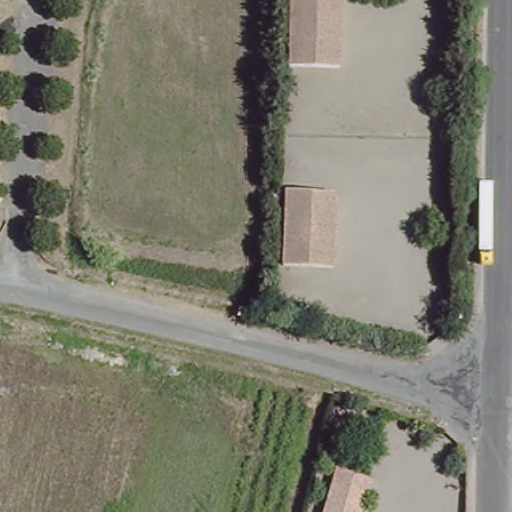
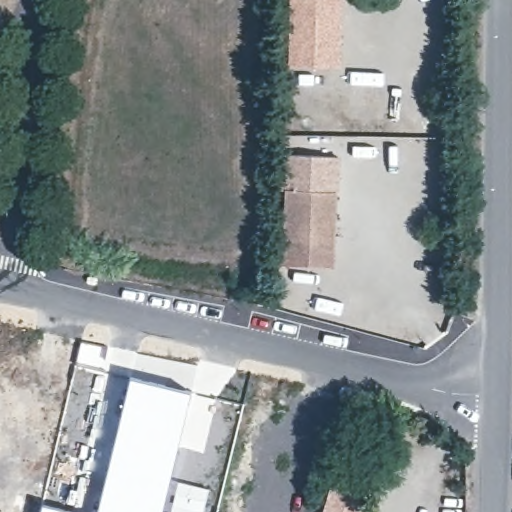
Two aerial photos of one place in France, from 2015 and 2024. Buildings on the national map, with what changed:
unchanged [(288,71),(291,0),(347,0),(341,74),(288,71)]
new [(339,193),(336,193),(282,192),(280,191),(283,155),(340,157),(339,193)]
unchanged [(279,264),(282,192),(336,193),(332,268),(279,264)]
new [(128,375),(191,392),(171,478),(165,512),(96,512),(128,375)]
unchanged [(375,475),(365,512),(325,512),(340,468),(375,475)]
new [(41,503),(80,512),(39,512),(41,503)]

